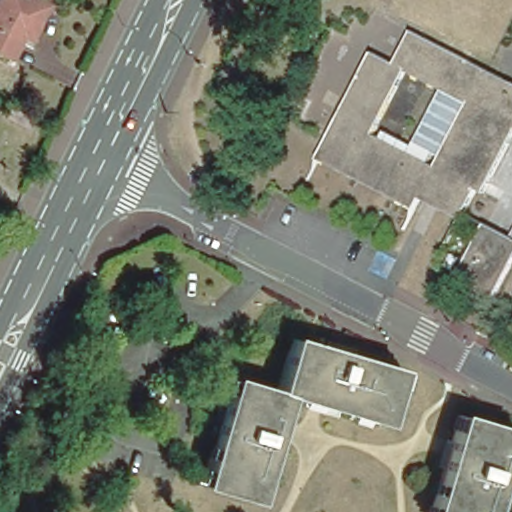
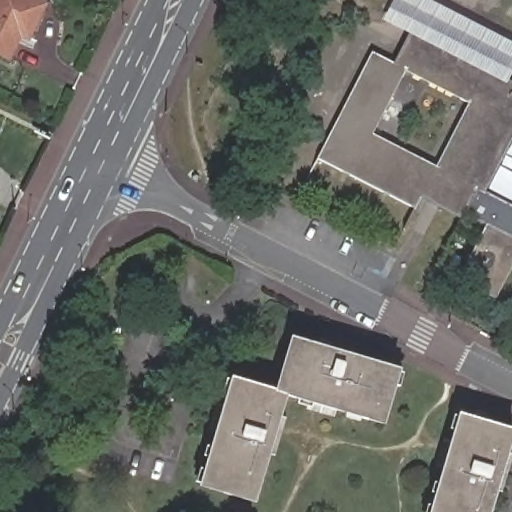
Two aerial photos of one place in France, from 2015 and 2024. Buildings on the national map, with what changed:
unchanged [(41,5),(25,37),(17,33),(5,56),(0,54),(0,0),(30,0),(41,5)]
new [(394,0),(428,0),(512,43),(512,71),(506,81),(410,32),(384,19),(394,0)]
unchanged [(373,53),(393,63),(410,32),(506,81),(512,84),(512,139),(484,192),(477,188),(463,215),(461,219),(420,198),(415,208),(318,159),(373,53)]
new [(477,188),(484,192),(512,206),(512,241),(481,225),(463,215),(477,188)]
unchanged [(490,297),(454,279),(481,225),(512,241),(512,255),(490,297)]
demolished [(509,235),(512,229),(512,237),(509,235)]
unchanged [(197,486),(217,419),(221,405),(230,379),(273,391),(289,339),(322,349),(334,352),(394,371),(379,423),(318,406),(306,401),(282,395),(274,422),(270,435),(250,502),(197,486)]
unchanged [(452,441),(460,416),(512,432),(512,447),(509,458),(504,474),(493,512),(431,512),(448,456),(452,441)]

